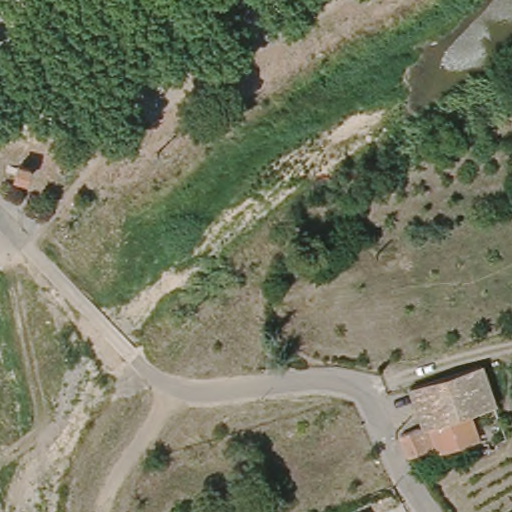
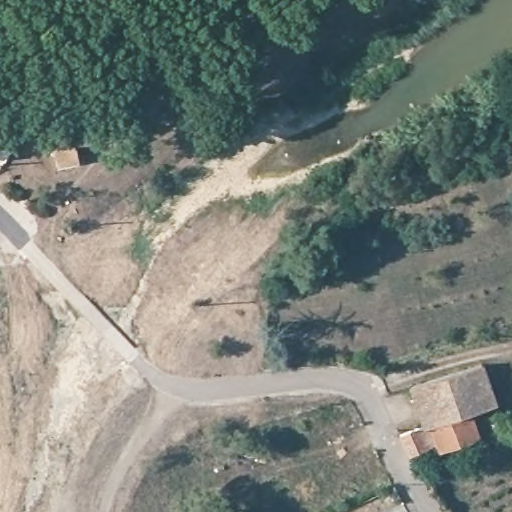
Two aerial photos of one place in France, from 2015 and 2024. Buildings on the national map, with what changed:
unchanged [(404,425),(422,420),(412,380),(429,375),(489,359),(500,400),(480,405),(482,430),(438,444),(436,437),(412,444),(404,425)]
unchanged [(224,512),(223,502),(280,483),(289,512),(224,512)]

